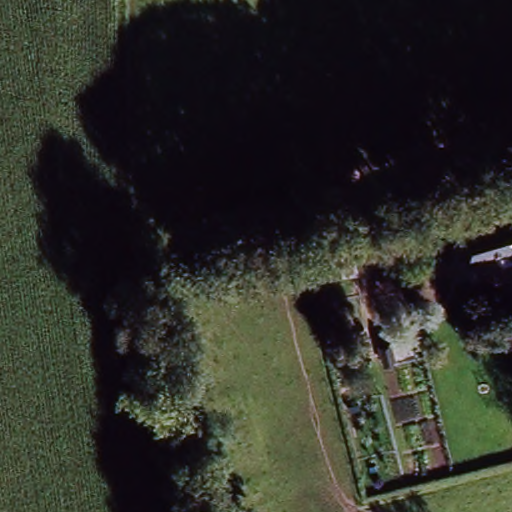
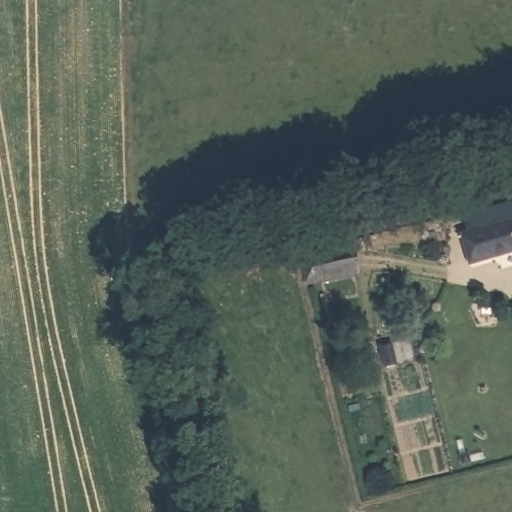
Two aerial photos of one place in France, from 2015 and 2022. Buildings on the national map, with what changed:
unchanged [(464,217),(512,203),(512,254),(468,267),(458,233),(468,231),(464,217)]
unchanged [(304,254),(356,247),(360,280),(312,289),(304,254)]

